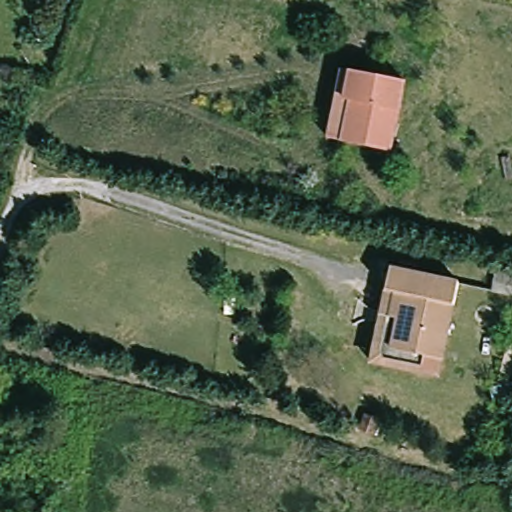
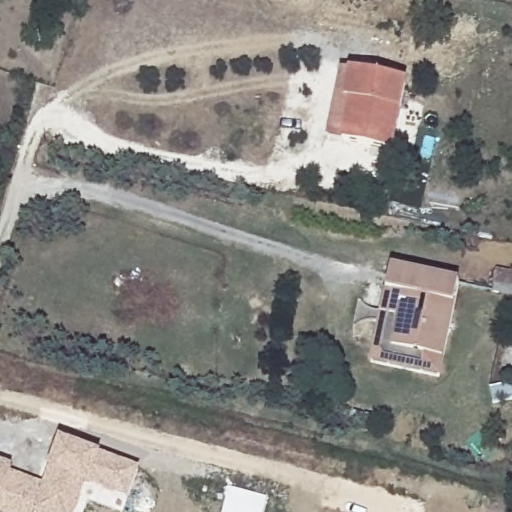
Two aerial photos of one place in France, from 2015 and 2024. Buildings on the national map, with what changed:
unchanged [(401,151),(352,141),(337,138),(352,69),(360,71),(415,82),(401,151)]
unchanged [(512,271),(512,295),(494,292),(499,268),(512,271)]
unchanged [(458,283),(438,379),(370,365),(390,269),(458,283)]
new [(43,483),(48,467),(60,437),(102,453),(139,466),(127,499),(90,485),(85,483),(75,512),(33,512),(0,512),(0,460),(12,464),(10,471),(43,483)]
new [(264,512),(224,512),(230,489),(267,498),(264,512)]

